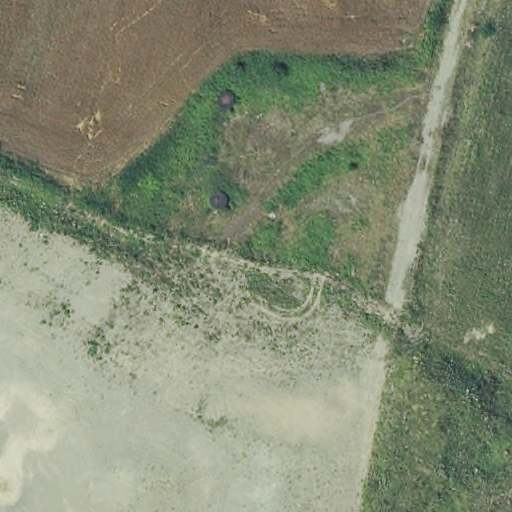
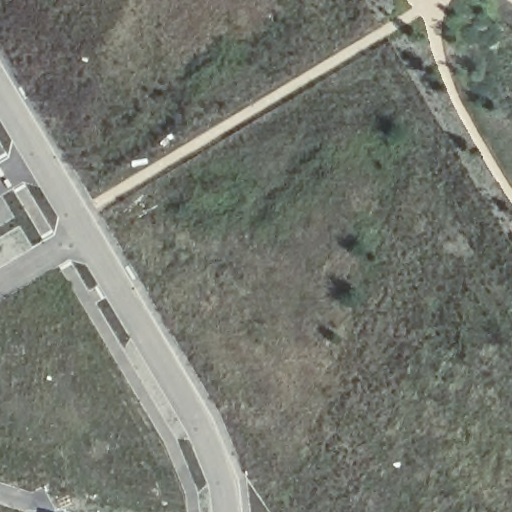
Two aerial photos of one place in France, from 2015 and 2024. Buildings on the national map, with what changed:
[]

